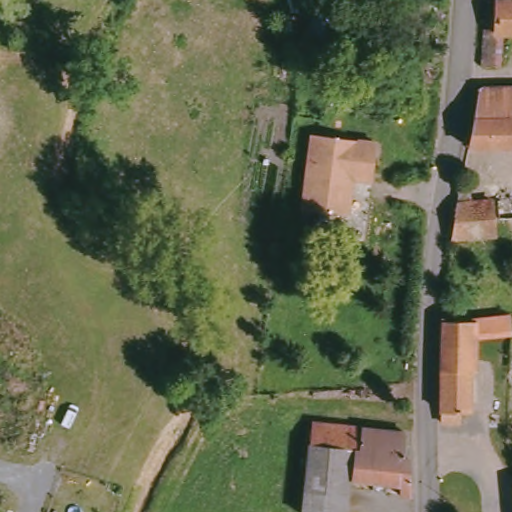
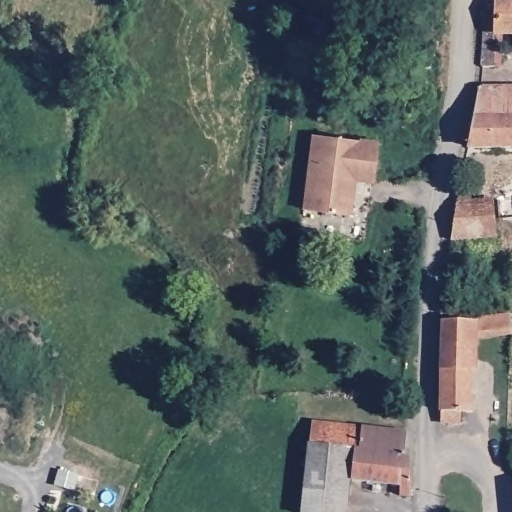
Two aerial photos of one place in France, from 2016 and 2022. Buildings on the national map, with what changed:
unchanged [(502,3),(512,3),(512,34),(505,34),(501,68),(488,68),(493,14),(501,15),(502,3)]
unchanged [(486,86),(512,88),(512,148),(475,148),(486,86)]
unchanged [(341,215),(303,210),(314,135),(378,144),(372,181),(355,179),(348,216),(341,215)]
unchanged [(492,202),(495,236),(455,239),(455,226),(460,203),(492,202)]
unchanged [(512,336),(473,340),(472,418),(460,418),(460,428),(443,428),(446,325),(511,319),(512,327),(512,336)]
unchanged [(376,454),(311,447),(313,422),(378,430),(376,454)]
unchanged [(411,498),(400,496),(400,488),(346,481),(344,512),(305,512),(311,447),(376,454),(378,430),(407,434),(411,498)]

